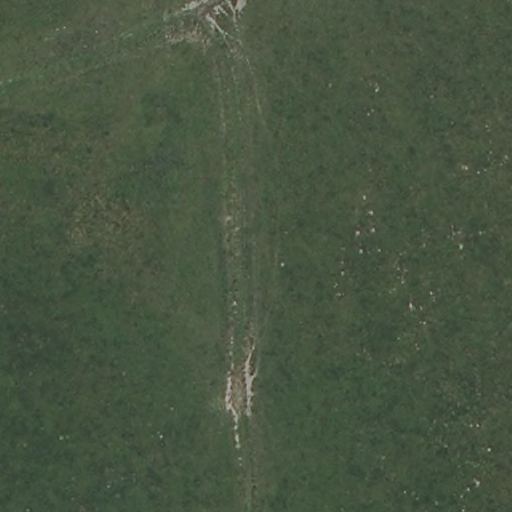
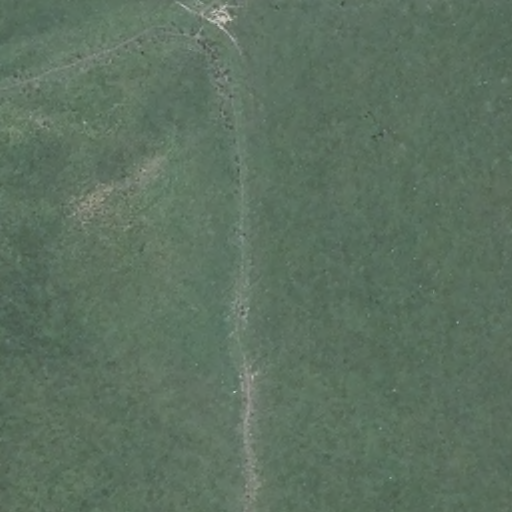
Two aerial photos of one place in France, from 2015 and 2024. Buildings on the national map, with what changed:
[]

